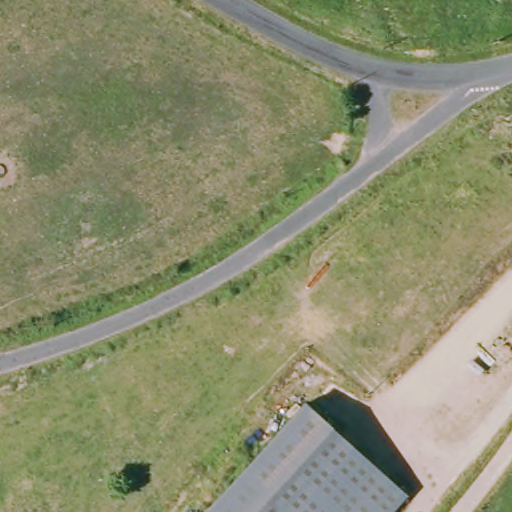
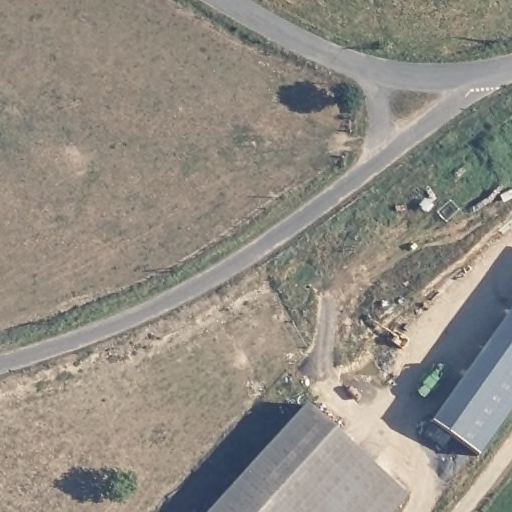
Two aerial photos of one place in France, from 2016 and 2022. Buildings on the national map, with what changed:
new [(480,454),(433,419),(512,307),(512,409),(480,454)]
unchanged [(392,512),(210,512),(304,409),(403,500),(392,512)]

